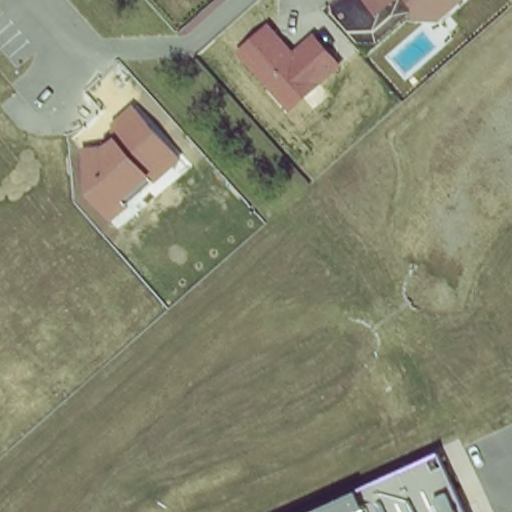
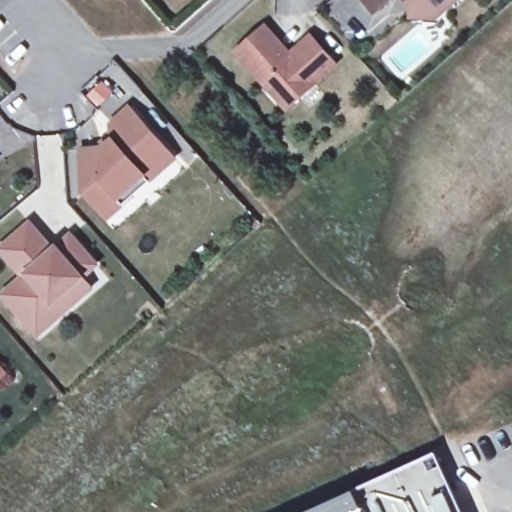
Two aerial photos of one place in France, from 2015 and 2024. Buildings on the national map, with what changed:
unchanged [(363,0),(394,0),(375,16),(363,0)]
unchanged [(415,21),(399,0),(466,0),(440,22),(415,21)]
unchanged [(268,24),(291,52),(310,34),(343,71),(289,115),(233,55),(268,24)]
unchanged [(101,146),(115,136),(107,129),(133,105),(181,159),(109,221),(80,191),(84,146),(101,146)]
new [(31,313),(6,287),(27,268),(2,242),(30,216),(46,232),(55,242),(72,226),(98,255),(85,267),(95,277),(85,286),(67,304),(42,326),(31,313)]
new [(0,369),(3,373),(0,376),(0,369)]
unchanged [(458,512),(300,512),(432,452),(458,512)]

